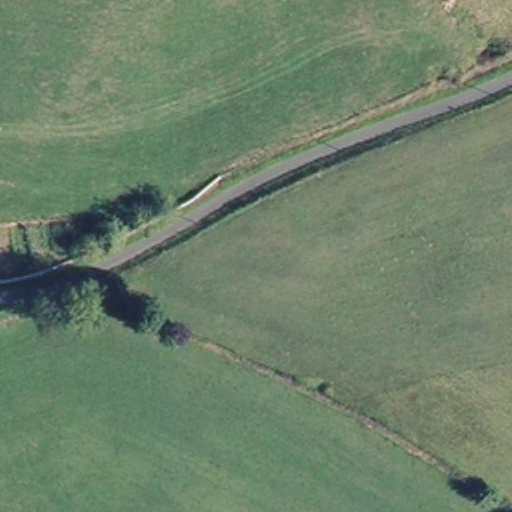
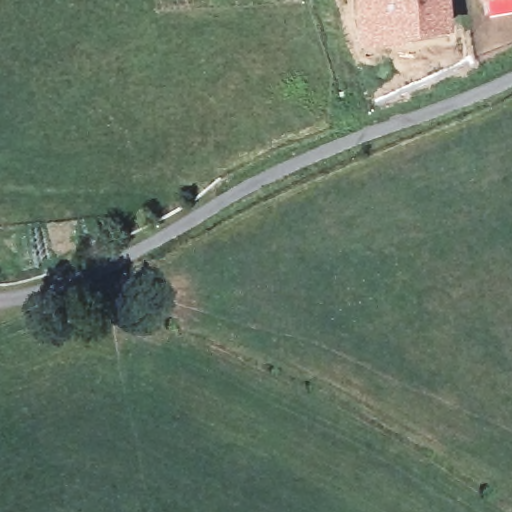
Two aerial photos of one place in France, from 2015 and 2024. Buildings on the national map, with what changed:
new [(451,26),(402,31),(402,37),(358,41),(357,0),(450,0),(451,26)]

